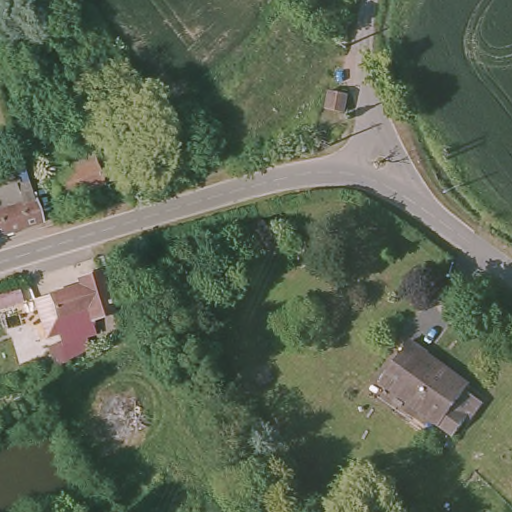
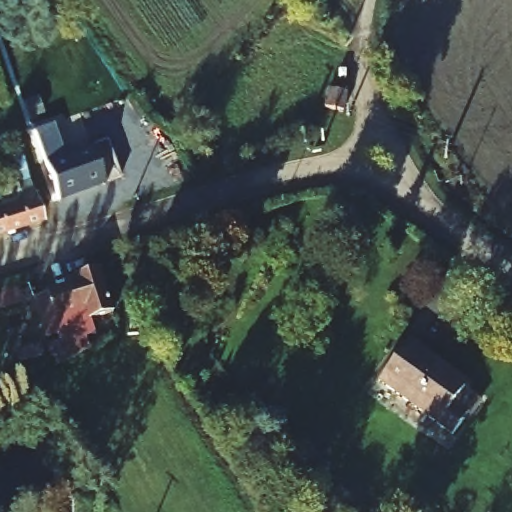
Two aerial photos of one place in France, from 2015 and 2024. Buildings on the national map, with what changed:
new [(34,130),(53,124),(64,159),(46,165),(34,130)]
demolished [(61,145),(53,148),(56,154),(38,161),(29,139),(55,130),(61,145)]
demolished [(55,207),(41,170),(88,154),(82,139),(93,135),(99,150),(104,149),(117,185),(55,207)]
new [(92,150),(105,187),(60,202),(46,165),(92,150)]
unchanged [(0,242),(0,163),(23,155),(46,228),(0,242)]
unchanged [(98,323),(103,340),(58,367),(53,353),(59,351),(56,341),(51,343),(40,305),(84,288),(79,271),(101,265),(115,314),(98,323)]
unchanged [(405,333),(461,377),(458,382),(471,394),(444,427),(376,373),(405,333)]

